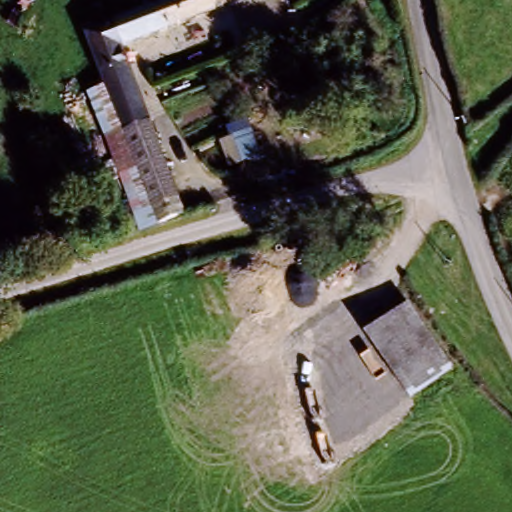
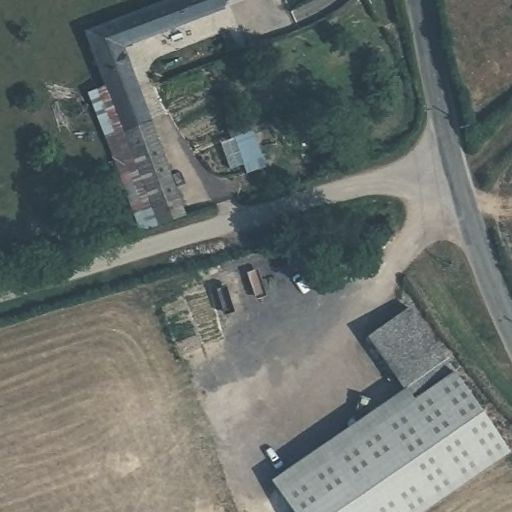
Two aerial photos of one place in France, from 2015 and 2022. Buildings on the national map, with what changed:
unchanged [(156,0),(216,0),(220,7),(118,44),(107,48),(95,22),(156,0)]
unchanged [(153,207),(80,27),(95,22),(107,48),(118,44),(180,197),(153,207)]
unchanged [(260,133),(268,161),(231,171),(222,141),(260,133)]
demolished [(446,366),(410,390),(369,329),(405,304),(446,366)]
new [(510,453),(425,512),(291,512),(270,481),(404,389),(368,336),(410,308),(453,371),(510,453)]
demolished [(383,378),(356,395),(331,357),(358,339),(383,378)]

